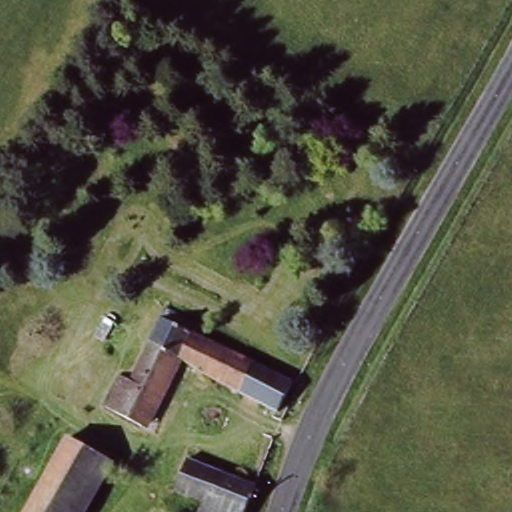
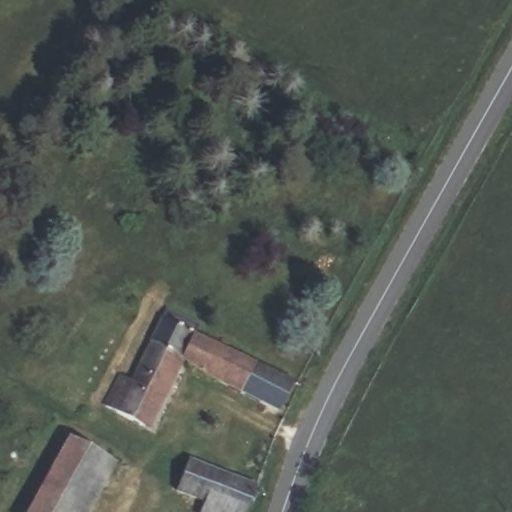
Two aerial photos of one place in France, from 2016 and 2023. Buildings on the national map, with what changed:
unchanged [(118,378),(129,383),(149,345),(146,343),(163,312),(196,328),(192,337),(290,385),(276,415),(223,387),(176,359),(141,429),(123,420),(102,410),(118,378)]
unchanged [(78,512),(33,512),(72,441),(106,460),(78,512)]
unchanged [(249,512),(204,512),(206,505),(178,493),(191,462),(258,488),(249,512)]

